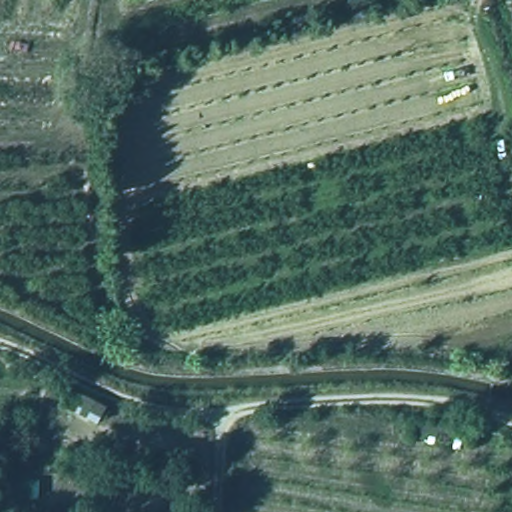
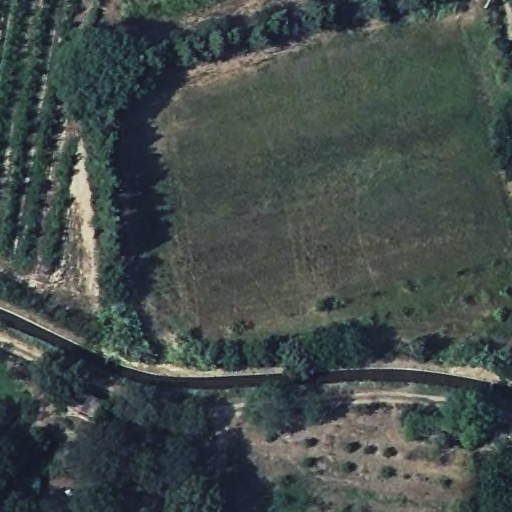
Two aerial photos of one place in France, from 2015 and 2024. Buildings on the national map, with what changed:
unchanged [(102,408),(92,422),(58,407),(67,391),(102,408)]

